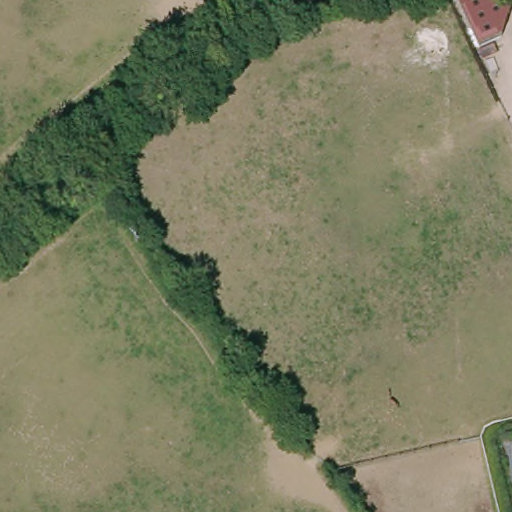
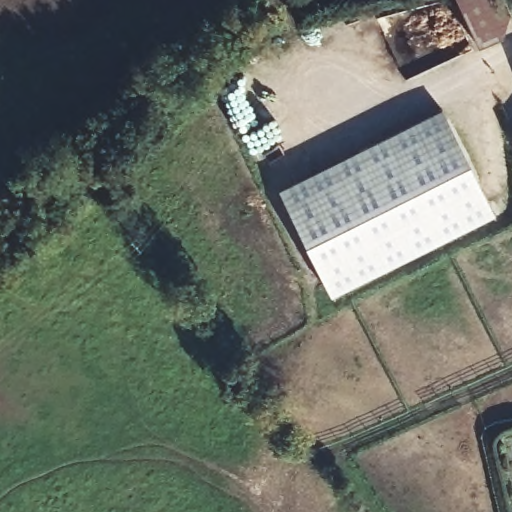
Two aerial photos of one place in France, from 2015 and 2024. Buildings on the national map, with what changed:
new [(457,0),(505,0),(510,10),(504,37),(479,49),(457,0)]
new [(444,110),(497,217),(332,299),(279,192),(444,110)]

